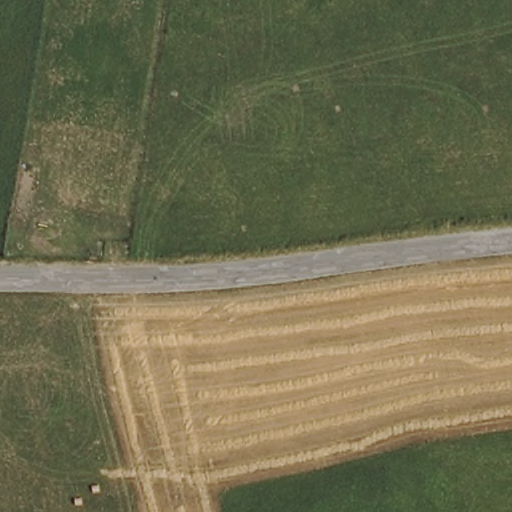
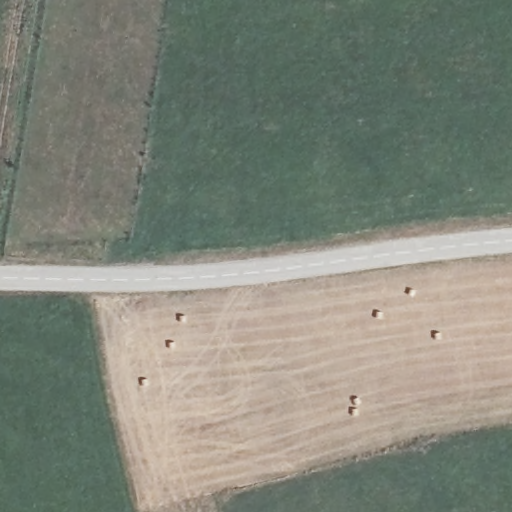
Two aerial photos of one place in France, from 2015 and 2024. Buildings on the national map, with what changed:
[]

